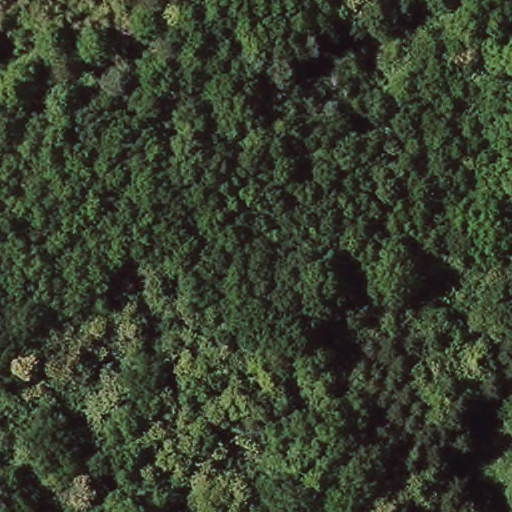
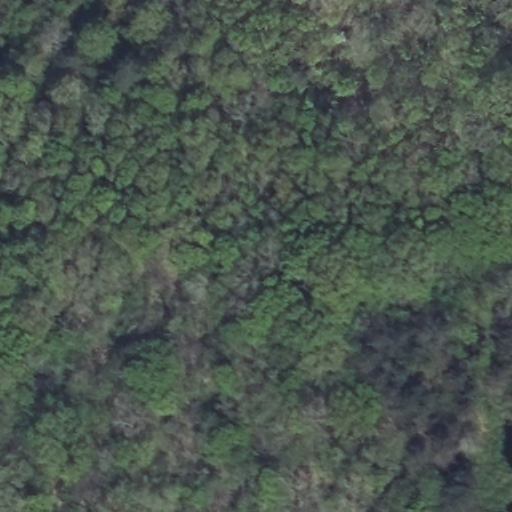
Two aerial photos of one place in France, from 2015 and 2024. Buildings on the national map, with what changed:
[]

